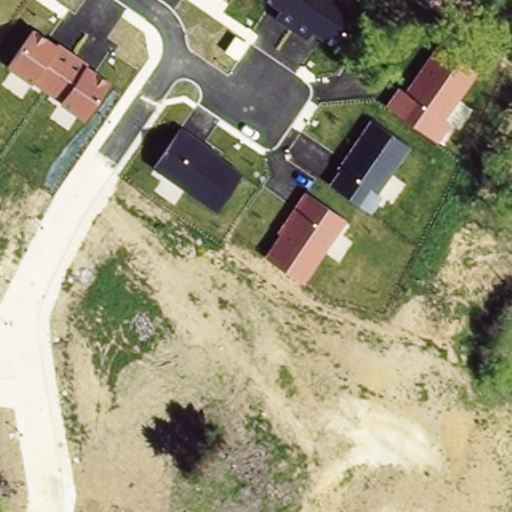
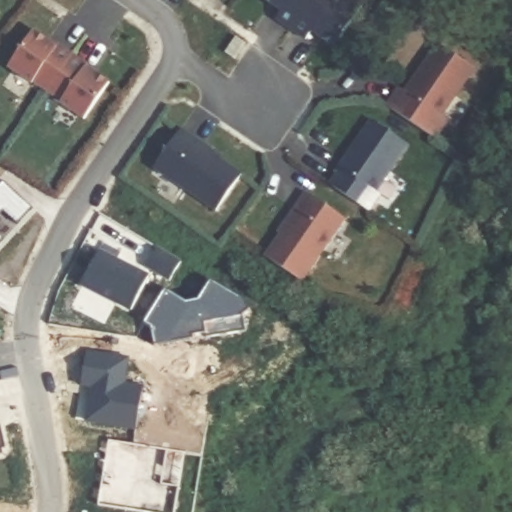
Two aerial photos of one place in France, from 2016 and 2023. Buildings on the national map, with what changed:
unchanged [(312,29),(306,38),(276,17),(279,12),(262,0),(357,0),(363,4),(334,46),(312,29)]
unchanged [(2,7),(0,10),(0,6),(2,7)]
unchanged [(58,101),(61,99),(34,79),(30,83),(6,67),(33,27),(57,42),(60,39),(88,59),(85,64),(110,81),(83,118),(58,101)]
unchanged [(385,104),(397,84),(401,87),(433,39),(476,68),(442,116),(448,121),(436,138),(385,104)]
unchanged [(329,181),(372,118),(408,145),(377,191),(381,195),(370,210),(329,181)]
unchanged [(155,167),(183,127),(242,170),(217,209),(155,167)]
new [(17,224),(2,211),(0,214),(0,183),(3,180),(32,207),(17,224)]
unchanged [(265,256),(281,231),(277,228),(302,191),(344,218),(301,282),(265,256)]
new [(3,239),(0,243),(0,236),(3,239)]
new [(159,246),(182,260),(171,280),(147,266),(159,246)]
new [(100,251),(148,276),(131,309),(84,285),(100,251)]
new [(202,302),(215,281),(245,300),(253,313),(245,315),(247,330),(206,337),(206,333),(194,336),(194,340),(155,346),(152,328),(145,323),(166,287),(188,300),(202,302)]
new [(129,356),(125,384),(145,387),(137,429),(88,421),(94,386),(82,384),(88,350),(129,356)]
new [(2,424),(8,447),(5,448),(7,452),(0,454),(0,425),(2,424)]

